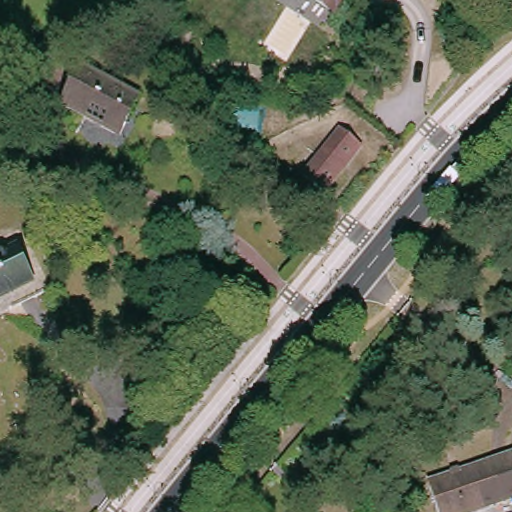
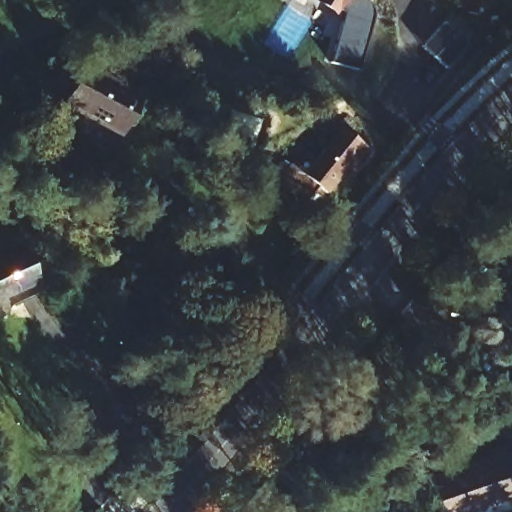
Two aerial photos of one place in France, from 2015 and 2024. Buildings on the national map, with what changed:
unchanged [(329,0),(337,0),(335,4),(329,0)]
new [(373,11),(359,68),(331,61),(344,11),(335,4),(337,0),(366,0),(372,5),(373,11)]
unchanged [(160,60),(150,36),(164,30),(174,53),(160,60)]
unchanged [(83,59),(138,91),(116,128),(61,96),(83,59)]
unchanged [(335,134),(357,151),(320,198),(298,181),(335,134)]
unchanged [(17,242),(32,277),(0,292),(0,249),(17,242)]
unchanged [(446,470),(512,445),(512,501),(508,488),(499,491),(501,495),(455,512),(436,512),(426,485),(449,477),(446,470)]

